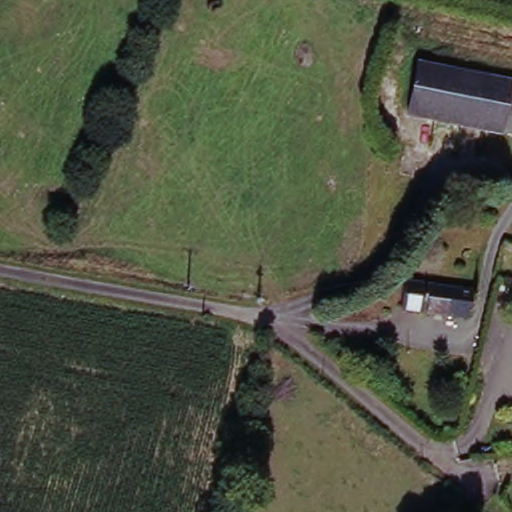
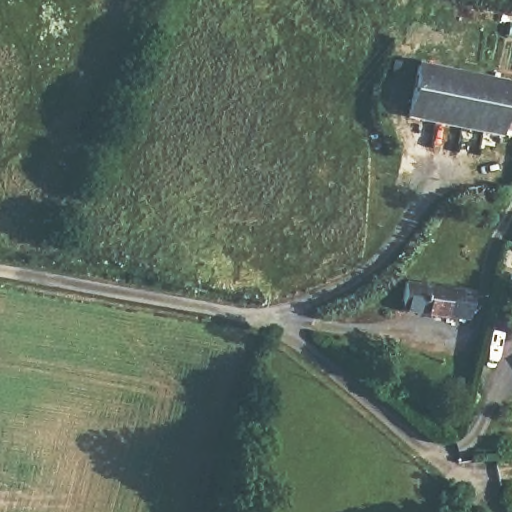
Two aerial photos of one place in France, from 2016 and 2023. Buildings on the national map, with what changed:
unchanged [(423,67),(512,81),(512,134),(415,118),(423,67)]
unchanged [(464,287),(464,290),(480,290),(480,314),(464,313),(464,315),(412,316),(412,288),(464,287)]

